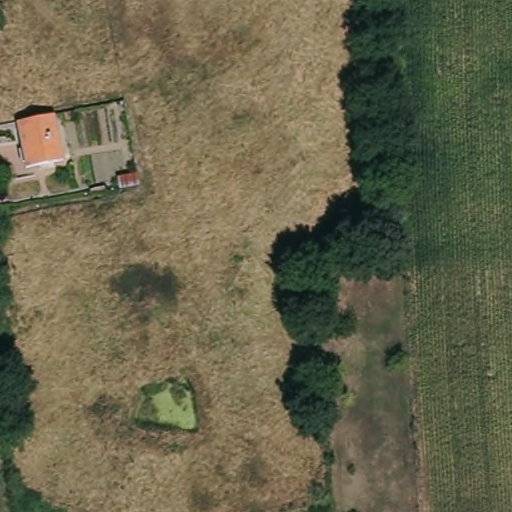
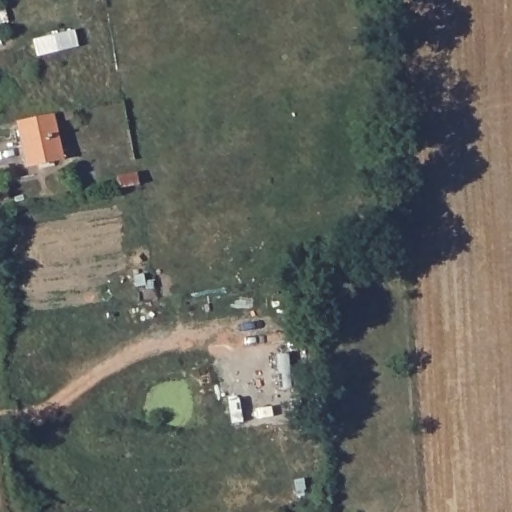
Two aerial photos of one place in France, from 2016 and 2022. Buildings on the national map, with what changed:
unchanged [(50,118),(63,163),(27,173),(15,128),(50,118)]

